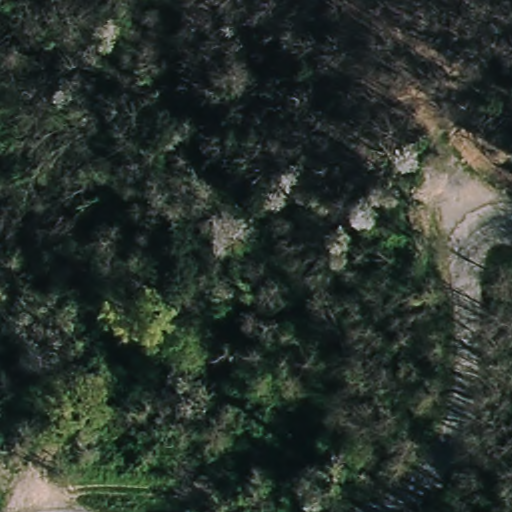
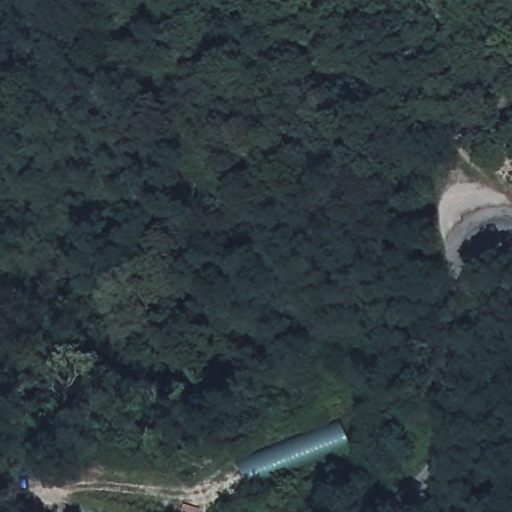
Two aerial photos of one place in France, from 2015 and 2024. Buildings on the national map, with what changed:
new [(249,488),(237,462),(339,419),(350,447),(249,488)]

